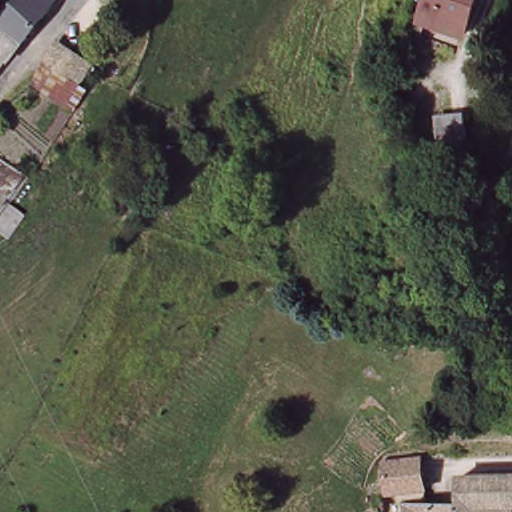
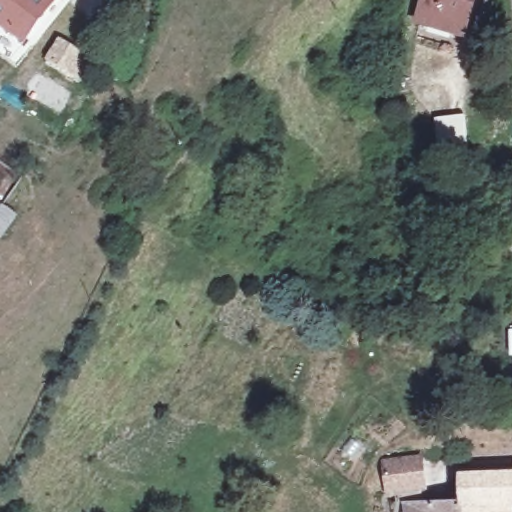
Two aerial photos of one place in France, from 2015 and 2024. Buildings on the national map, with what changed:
unchanged [(16,58),(0,44),(0,0),(62,0),(16,58)]
unchanged [(422,25),(429,0),(470,0),(460,36),(422,25)]
unchanged [(61,48),(99,71),(92,81),(85,92),(47,67),(61,48)]
unchanged [(85,92),(71,110),(40,89),(33,85),(47,67),(85,92)]
unchanged [(436,150),(432,123),(460,119),(465,147),(436,150)]
unchanged [(17,214),(3,241),(0,239),(0,208),(2,205),(17,214)]
unchanged [(415,448),(416,464),(418,485),(396,487),(382,487),(380,451),(415,448)]
unchanged [(512,506),(508,506),(509,512),(456,512),(456,506),(455,474),(512,474),(512,506)]
unchanged [(409,512),(408,507),(456,506),(456,512),(409,512)]

